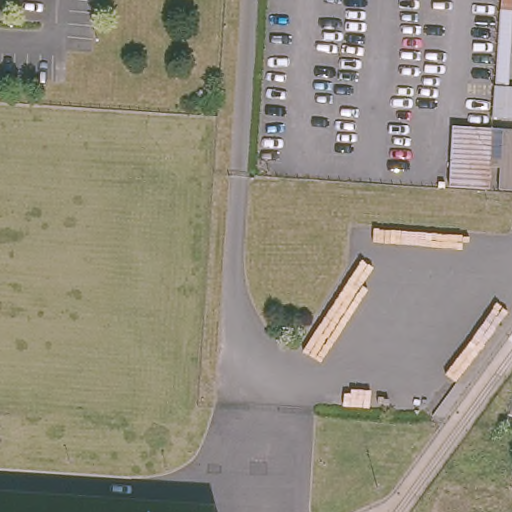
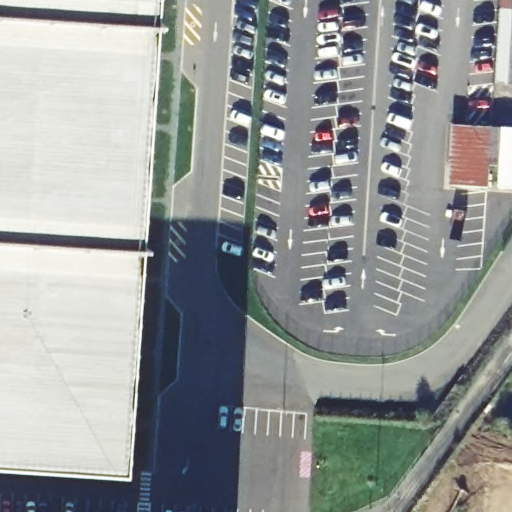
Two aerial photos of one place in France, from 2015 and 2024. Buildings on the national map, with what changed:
new [(0,0),(150,0),(118,468),(0,460),(0,0)]
unchanged [(448,122),(484,125),(512,128),(512,189),(444,183),(448,122)]

